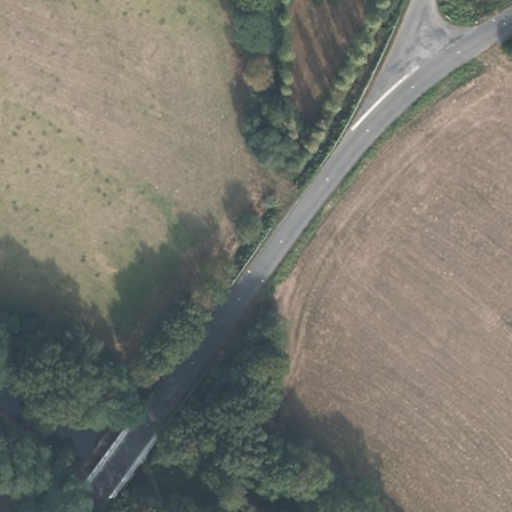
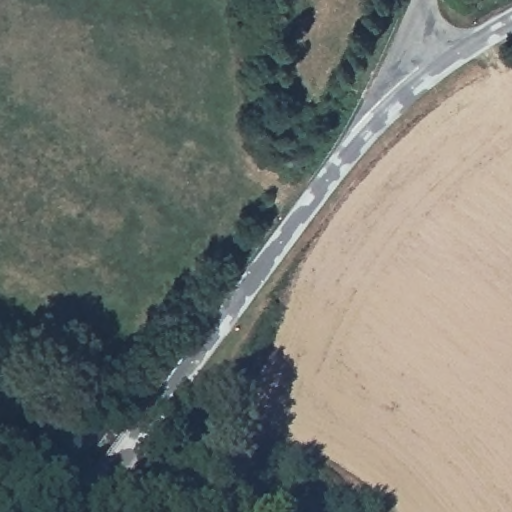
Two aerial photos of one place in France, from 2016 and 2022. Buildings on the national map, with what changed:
[]

